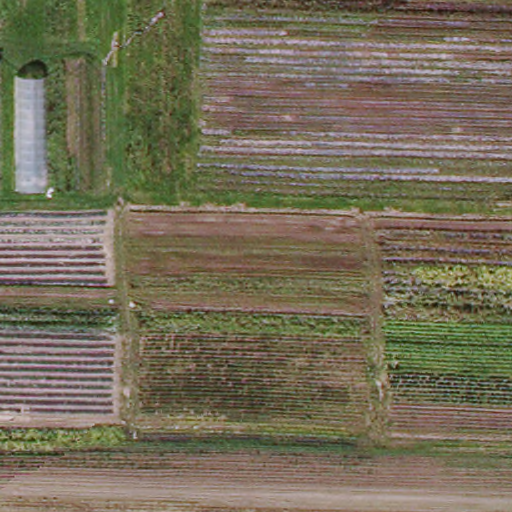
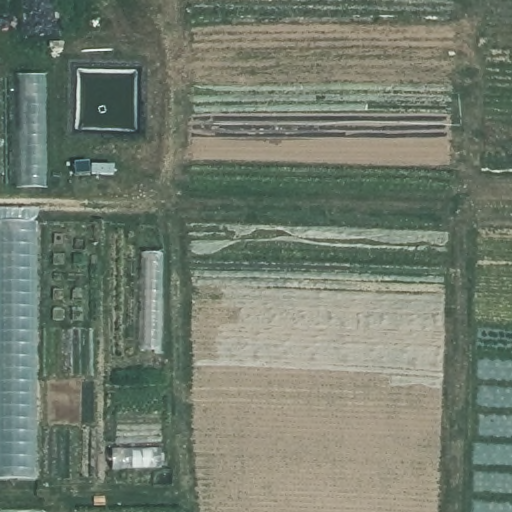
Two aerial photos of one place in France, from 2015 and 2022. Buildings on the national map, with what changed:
unchanged [(41,74),(43,186),(0,187),(0,74),(41,74)]
new [(37,220),(39,481),(0,481),(0,220),(37,220)]

